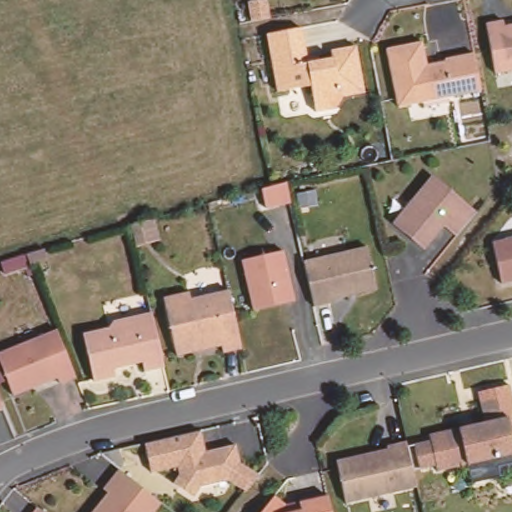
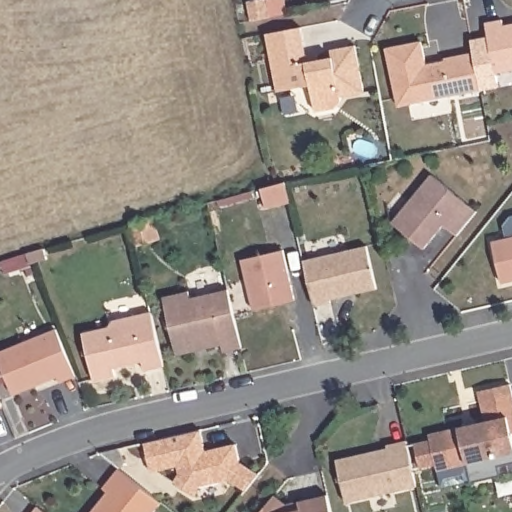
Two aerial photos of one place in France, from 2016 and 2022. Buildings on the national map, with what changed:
unchanged [(504,26),(512,25),(512,70),(495,74),(486,24),(502,20),(504,26)]
unchanged [(300,25),(306,60),(316,59),(331,56),(330,49),(355,44),(363,91),(340,95),(340,97),(334,106),(314,110),(310,84),(276,90),(266,32),(277,30),(300,25)]
unchanged [(480,77),(482,90),(400,106),(390,52),(425,46),(428,67),(447,64),(447,59),(476,53),(480,77)]
unchanged [(390,225),(430,178),(474,215),(458,235),(454,239),(441,228),(421,251),(390,225)]
unchanged [(262,188),(277,185),(281,204),(257,210),(252,190),(262,188)]
unchanged [(492,244),(512,238),(512,278),(501,280),(492,244)]
unchanged [(367,244),(377,286),(331,297),(332,300),(316,304),(305,258),(367,244)]
unchanged [(39,250),(42,260),(25,265),(21,255),(39,250)]
unchanged [(255,311),(243,261),(285,252),(296,302),(255,311)]
unchanged [(182,295),(185,301),(222,292),(237,351),(218,355),(216,347),(172,357),(159,300),(182,295)]
unchanged [(100,330),(104,322),(145,312),(157,368),(137,372),(134,362),(104,369),(106,377),(86,382),(75,335),(100,330)]
unchanged [(60,351),(70,378),(55,384),(52,378),(7,396),(0,378),(0,351),(51,330),(60,351)]
unchanged [(430,435),(443,431),(486,420),(477,390),(509,382),(512,394),(512,431),(512,461),(500,465),(502,474),(473,481),(468,462),(452,466),(437,470),(437,465),(420,468),(413,443),(431,440),(430,435)]
unchanged [(199,430),(204,450),(235,443),(240,461),(258,475),(246,491),(231,478),(202,485),(194,496),(176,482),(182,474),(181,465),(151,473),(144,445),(199,430)]
unchanged [(388,450),(387,448),(405,443),(416,488),(349,505),(338,462),(388,450)]
unchanged [(124,465),(119,471),(100,455),(119,450),(124,465)]
unchanged [(155,512),(92,512),(112,489),(107,485),(119,471),(139,488),(160,506),(155,512)]
unchanged [(261,512),(272,497),(285,507),(327,496),(331,512),(261,512)]
unchanged [(43,512),(36,512),(39,509),(43,512)]

